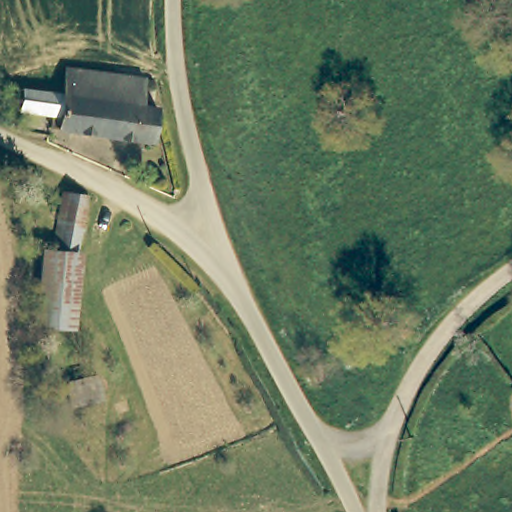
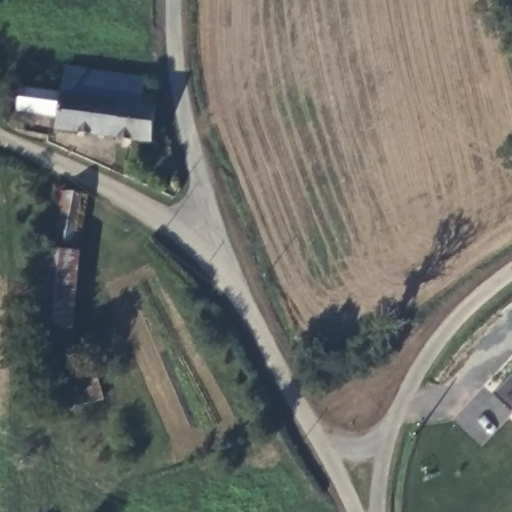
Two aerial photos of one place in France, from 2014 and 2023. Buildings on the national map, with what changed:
unchanged [(19,112),(22,91),(64,95),(67,69),(110,74),(100,138),(59,131),(61,119),(19,112)]
unchanged [(150,147),(100,138),(110,74),(146,79),(144,108),(151,108),(150,147)]
unchanged [(80,250),(54,246),(67,186),(91,192),(80,250)]
unchanged [(80,250),(84,250),(80,287),(76,323),(40,318),(43,293),(48,245),(54,246),(80,250)]
new [(494,394),(512,375),(512,412),(494,394)]

